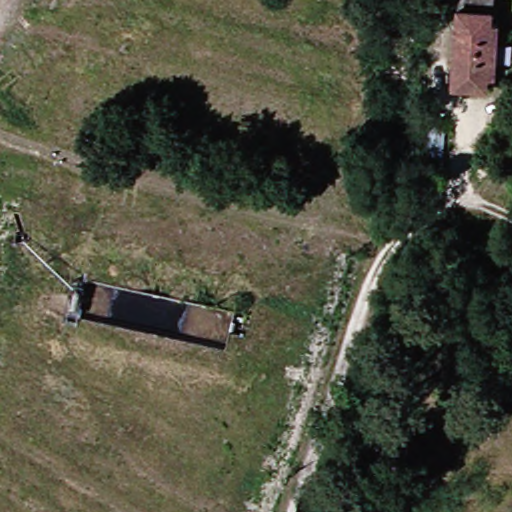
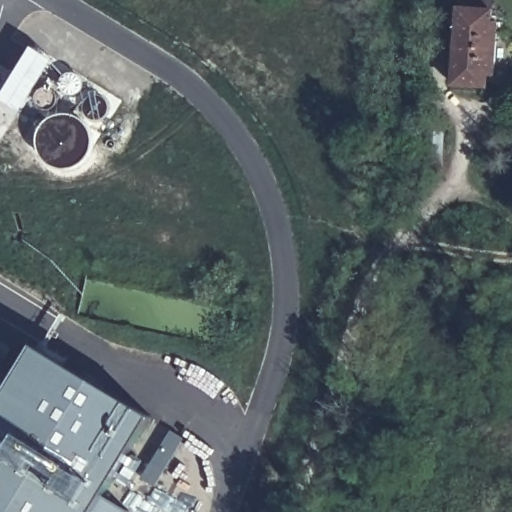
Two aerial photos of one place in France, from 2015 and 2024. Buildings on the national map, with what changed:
unchanged [(444,11),(449,11),(451,0),(480,0),(479,26),(488,28),(489,73),(481,73),(482,89),(445,88),(444,11)]
new [(21,111),(1,99),(33,47),(53,59),(21,111)]
unchanged [(423,169),(421,120),(443,120),(444,167),(423,169)]
new [(122,512),(0,512),(0,418),(40,350),(144,415),(95,494),(123,511),(122,512)]

